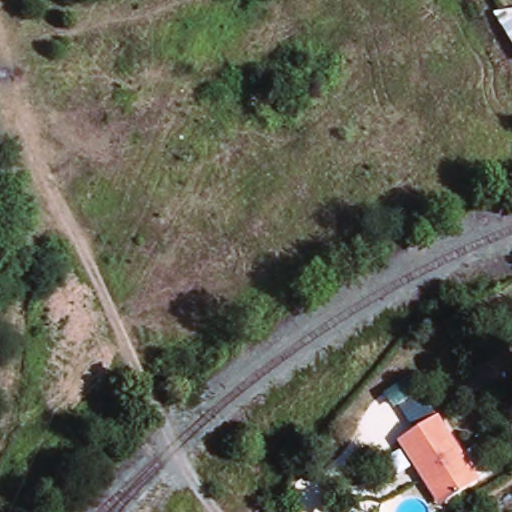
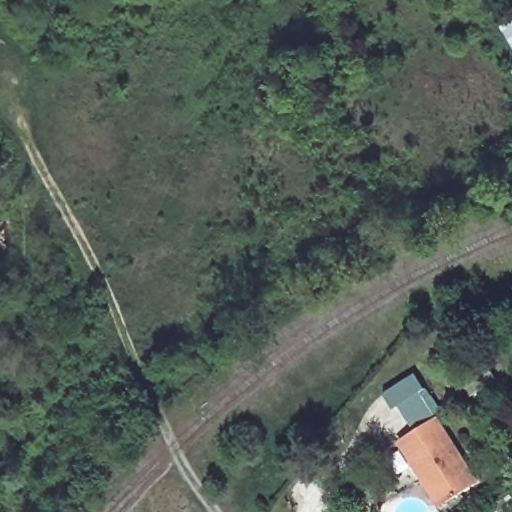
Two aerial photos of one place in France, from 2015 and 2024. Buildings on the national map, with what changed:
unchanged [(512,49),(495,23),(512,14),(512,49)]
unchanged [(488,364),(497,379),(465,399),(455,383),(488,364)]
unchanged [(436,420),(478,486),(447,506),(425,471),(419,475),(400,443),(436,420)]

